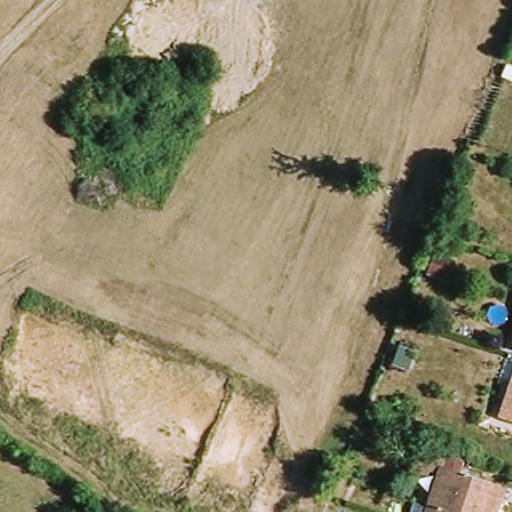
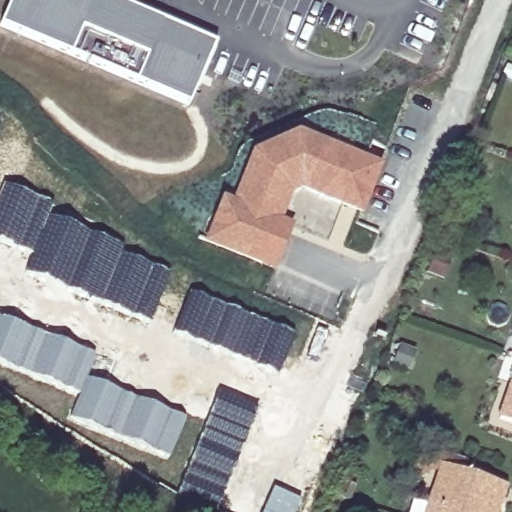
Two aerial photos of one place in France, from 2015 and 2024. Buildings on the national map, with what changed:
new [(190,102),(2,23),(11,0),(110,0),(213,44),(190,102)]
new [(273,269),(262,264),(216,247),(206,242),(222,202),(232,206),(252,156),(296,136),(300,138),(348,157),(378,169),(360,213),(300,190),(289,195),(278,223),(289,227),(273,269)]
new [(53,207),(48,217),(30,256),(0,243),(0,191),(2,185),(53,207)]
new [(30,256),(48,217),(122,251),(121,254),(169,275),(148,323),(23,272),(30,256)]
new [(188,291),(293,335),(277,376),(170,333),(188,291)]
new [(86,377),(78,392),(0,360),(0,313),(95,356),(86,377)]
new [(78,392),(86,377),(185,417),(171,455),(69,416),(78,392)]
unchanged [(497,421),(509,386),(512,386),(512,426),(497,421)]
unchanged [(430,479),(418,475),(421,466),(425,452),(447,460),(445,468),(506,490),(498,512),(427,512),(442,475),(434,471),(430,479)]

